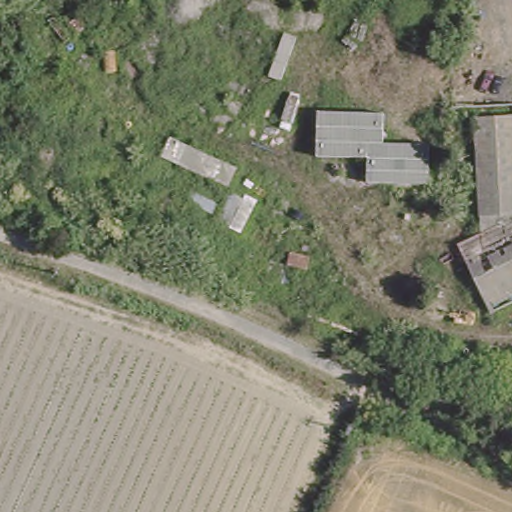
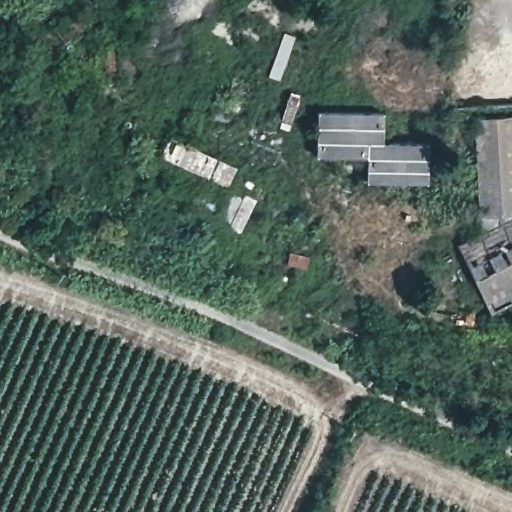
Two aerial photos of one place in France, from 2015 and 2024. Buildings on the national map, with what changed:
unchanged [(474,116),(512,115),(512,209),(476,210),(474,116)]
unchanged [(381,117),(381,147),(425,146),(425,185),(362,184),(362,163),(314,161),(315,117),(381,117)]
unchanged [(457,239),(512,213),(512,297),(489,307),(457,239)]

